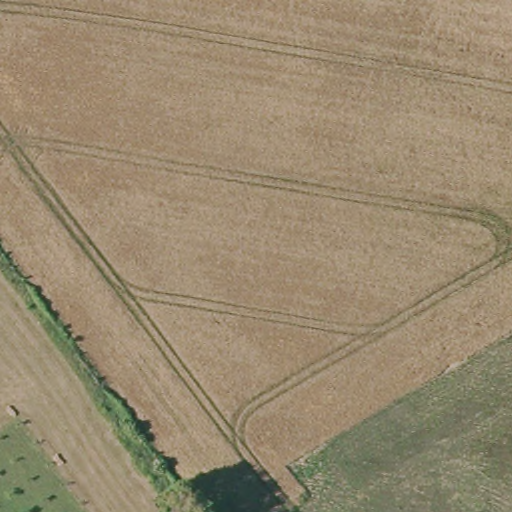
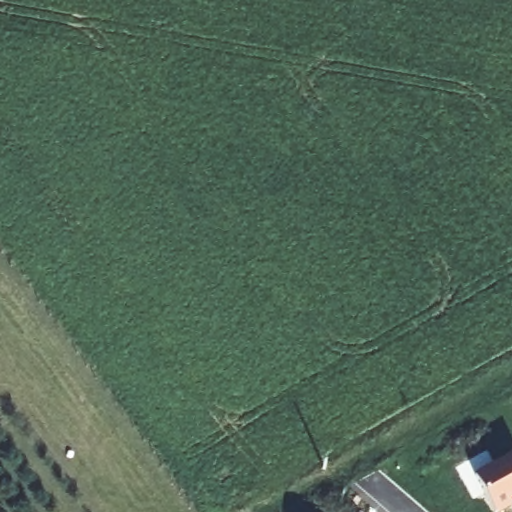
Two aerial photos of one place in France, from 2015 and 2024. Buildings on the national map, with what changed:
new [(512,456),(512,508),(505,512),(495,512),(475,476),(512,456)]

